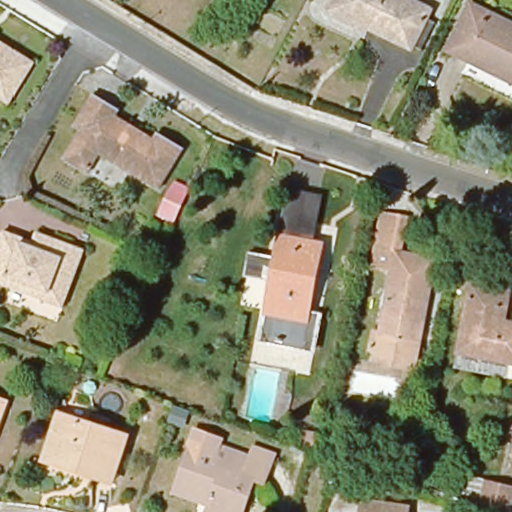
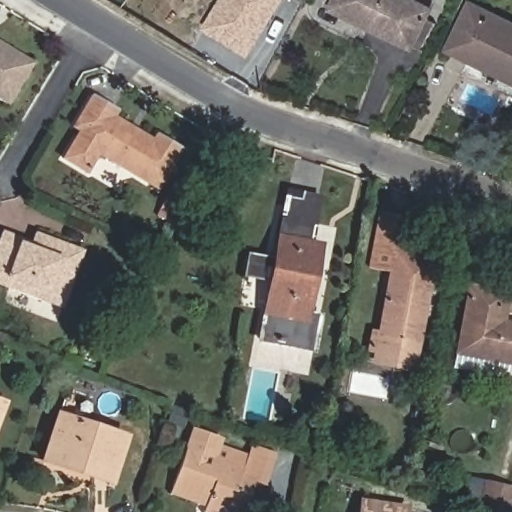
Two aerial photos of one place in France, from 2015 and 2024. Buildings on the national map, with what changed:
new [(283,0),(247,59),(200,30),(220,0),(283,0)]
unchanged [(374,24),(333,5),(336,0),(411,0),(430,9),(428,15),(437,19),(421,51),(412,46),(411,49),(372,29),(374,24)]
unchanged [(466,9),(512,32),(512,89),(442,56),(466,9)]
unchanged [(35,63),(9,105),(0,99),(0,40),(35,63)]
unchanged [(95,155),(83,174),(58,159),(73,131),(67,126),(87,94),(115,110),(112,115),(148,138),(152,133),(178,148),(153,189),(95,155)]
unchanged [(283,190),(316,196),(310,227),(277,221),(283,190)]
unchanged [(363,371),(381,277),(361,273),(370,217),(401,222),(396,250),(437,258),(415,379),(363,371)]
unchanged [(317,244),(297,348),(255,339),(266,282),(245,278),(241,278),(245,258),(248,259),(269,263),(277,221),(310,227),(307,242),(317,244)]
unchanged [(31,238),(80,255),(60,304),(45,298),(41,307),(0,291),(0,237),(26,245),(28,245),(31,238)]
unchanged [(512,312),(512,369),(454,358),(471,274),(511,282),(506,311),(512,312)]
unchanged [(1,402),(0,405),(0,402),(1,402)]
unchanged [(172,407),(183,411),(178,424),(167,420),(172,407)]
unchanged [(95,469),(68,459),(65,467),(45,459),(60,414),(126,436),(114,475),(95,469)]
unchanged [(202,504),(203,499),(168,487),(188,434),(213,443),(212,445),(242,456),(245,449),(270,459),(259,487),(250,484),(239,512),(224,512),(202,504)]
unchanged [(471,477),(501,484),(495,512),(473,512),(463,509),(471,477)]
unchanged [(360,503),(404,509),(404,512),(359,512),(360,503)]

